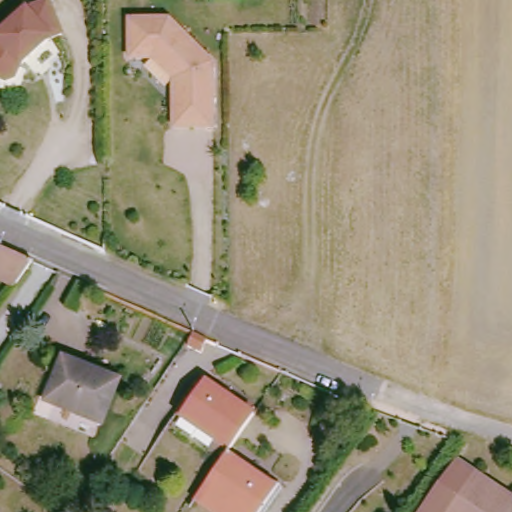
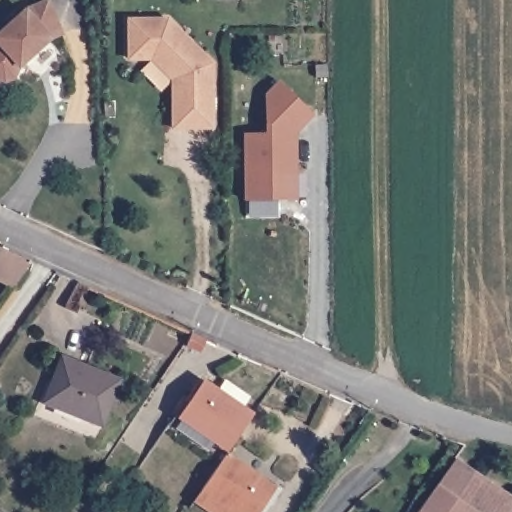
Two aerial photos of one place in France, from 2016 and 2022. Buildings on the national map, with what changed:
unchanged [(61,30),(50,35),(19,63),(14,74),(6,77),(0,74),(0,27),(24,7),(39,0),(49,0),(61,30)]
unchanged [(170,20),(213,64),(213,128),(174,128),(174,96),(178,93),(178,82),(156,59),(133,59),(133,20),(170,20)]
new [(266,132),(264,95),(278,81),(314,116),(298,133),(297,200),(244,200),(244,134),(266,132)]
unchanged [(0,279),(0,247),(31,260),(14,285),(0,279)]
unchanged [(187,345),(193,333),(206,339),(201,351),(187,345)]
unchanged [(39,408),(58,362),(83,373),(113,385),(95,429),(39,408)]
unchanged [(233,450),(185,417),(209,382),(258,415),(233,450)]
unchanged [(206,490),(231,454),(278,486),(260,512),(219,512),(199,499),(206,490)]
unchanged [(512,498),(512,512),(419,512),(457,459),(512,498)]

